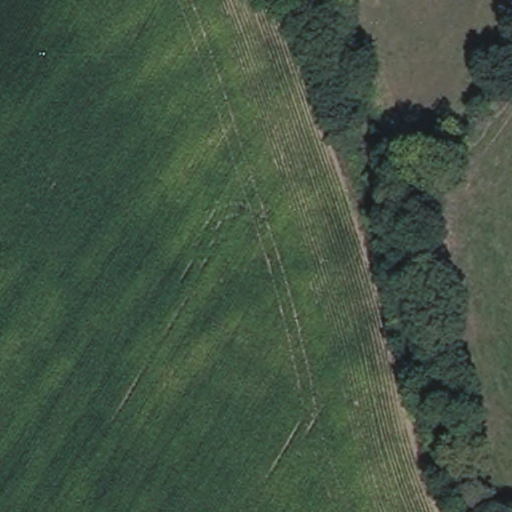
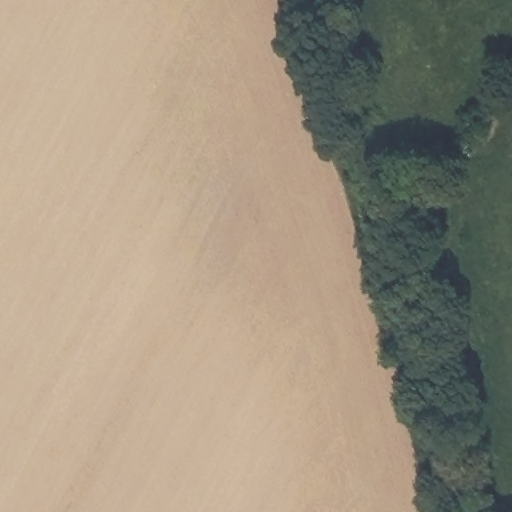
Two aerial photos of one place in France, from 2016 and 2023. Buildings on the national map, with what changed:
[]

